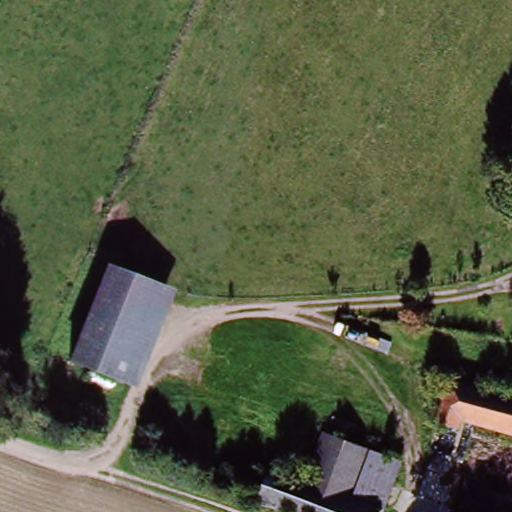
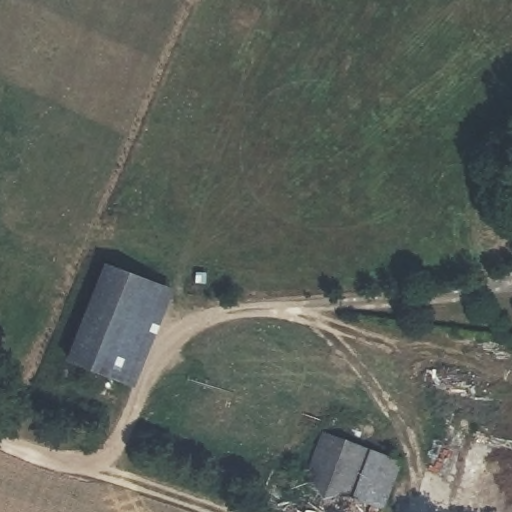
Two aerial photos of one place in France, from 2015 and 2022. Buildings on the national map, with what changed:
unchanged [(161,291),(121,380),(76,361),(115,271),(161,291)]
unchanged [(459,413),(450,430),(426,423),(447,370),(512,392),(512,430),(459,413)]
unchanged [(347,493),(309,480),(323,435),(363,450),(347,493)]
unchanged [(347,493),(363,450),(395,463),(380,506),(347,493)]
unchanged [(309,480),(347,493),(380,506),(378,512),(275,512),(257,506),(272,466),(309,480)]

